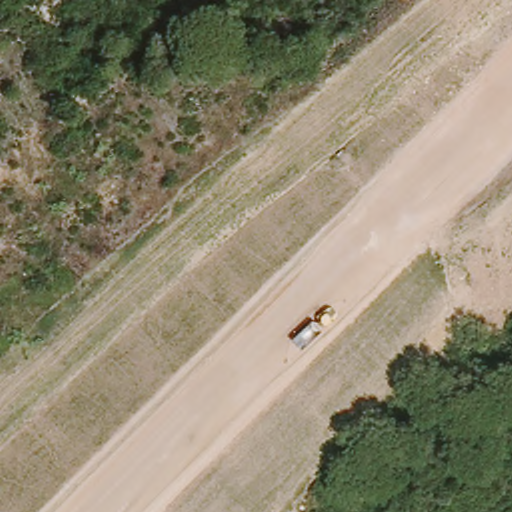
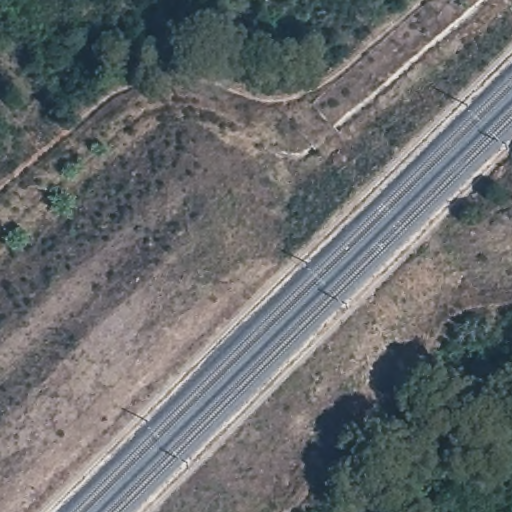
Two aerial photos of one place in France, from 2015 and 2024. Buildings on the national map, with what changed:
[]

